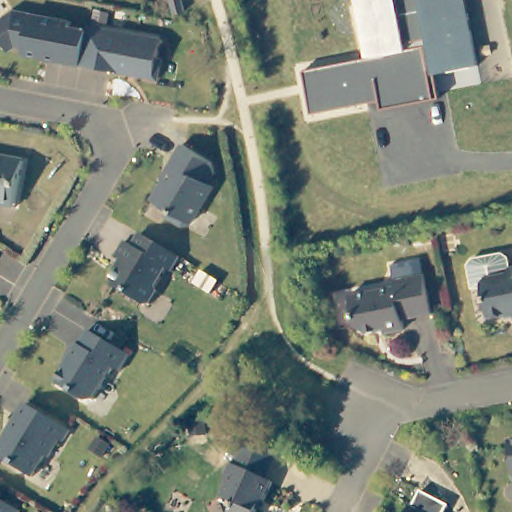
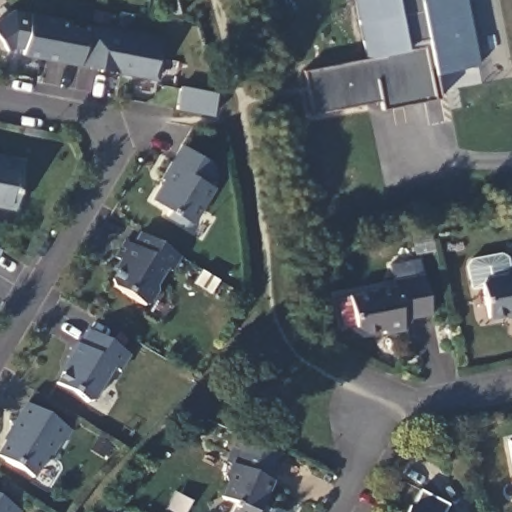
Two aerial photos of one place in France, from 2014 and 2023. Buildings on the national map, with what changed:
unchanged [(435,74),(440,99),(382,109),(380,101),(312,113),(304,71),(367,58),(355,0),(466,0),(479,66),(435,74)]
unchanged [(70,26),(87,29),(81,64),(58,59),(59,53),(47,51),(40,57),(23,53),(24,46),(15,45),(9,49),(0,37),(0,21),(14,10),(71,21),(70,26)]
unchanged [(162,38),(159,57),(162,57),(159,79),(81,64),(87,29),(88,24),(162,38)]
new [(181,85),(219,91),(214,113),(177,107),(181,85)]
unchanged [(209,183),(214,185),(192,223),(183,224),(167,215),(170,209),(152,199),(164,179),(162,178),(182,144),(213,161),(214,173),(209,183)]
unchanged [(29,165),(20,213),(0,209),(0,160),(29,165)]
unchanged [(125,246),(134,251),(142,237),(182,261),(174,275),(168,272),(158,291),(159,296),(152,310),(146,310),(115,292),(114,285),(124,267),(116,262),(125,246)]
unchanged [(481,290),(471,292),(466,269),(470,263),(499,257),(505,261),(507,271),(512,271),(512,316),(487,321),(481,290)]
unchanged [(394,285),(393,279),(422,274),(429,312),(397,317),(398,325),(367,330),(355,324),(349,292),(394,285)]
unchanged [(56,384),(70,361),(68,360),(78,344),(79,345),(88,330),(130,356),(120,372),(114,369),(94,402),(86,403),(56,384)]
unchanged [(59,442),(50,457),(46,457),(33,479),(0,459),(0,454),(12,433),(10,432),(26,405),(70,431),(64,441),(59,442)]
unchanged [(512,442),(512,472),(507,442),(512,442)]
unchanged [(255,512),(227,512),(233,499),(218,493),(224,477),(220,475),(228,463),(231,464),(239,452),(269,466),(265,475),(275,480),(264,501),(261,499),(255,512)]
unchanged [(20,511),(20,512),(0,512),(0,499),(20,511)]
unchanged [(410,508),(418,512),(409,512),(410,508)]

